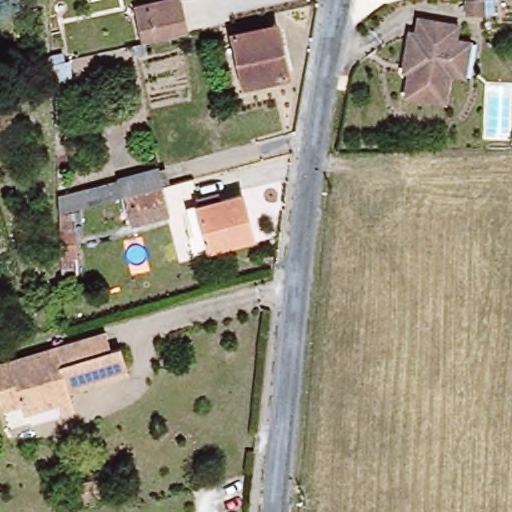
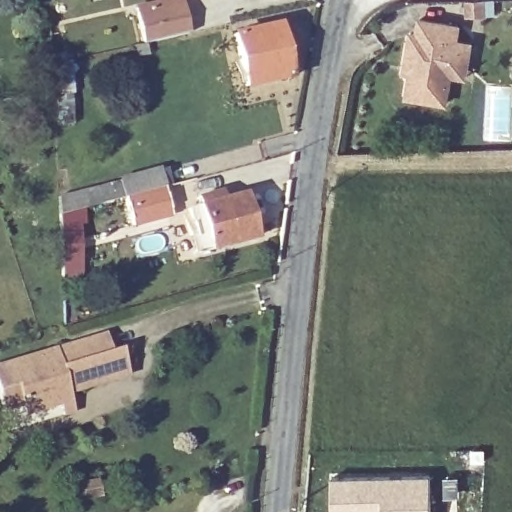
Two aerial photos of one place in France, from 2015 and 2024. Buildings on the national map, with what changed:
unchanged [(482,1),(482,15),(469,14),(468,1),(482,1)]
unchanged [(145,46),(139,19),(182,9),(189,36),(145,46)]
unchanged [(467,87),(448,84),(443,110),(402,101),(407,72),(400,70),(406,37),(412,39),(416,24),(459,34),(456,50),(473,54),(467,87)]
unchanged [(245,89),(232,39),(274,28),(287,77),(245,89)]
unchanged [(121,178),(160,169),(164,184),(172,215),(132,223),(125,194),(121,178)]
unchanged [(199,248),(189,207),(199,205),(197,199),(219,194),(220,199),(242,194),(253,234),(199,248)]
unchanged [(78,230),(78,253),(62,253),(61,229),(78,230)]
unchanged [(57,402),(26,412),(24,405),(2,411),(0,404),(0,362),(104,330),(111,348),(120,346),(129,373),(70,391),(72,398),(74,407),(61,411),(57,402)]
new [(431,512),(332,512),(331,480),(430,476),(431,512)]

